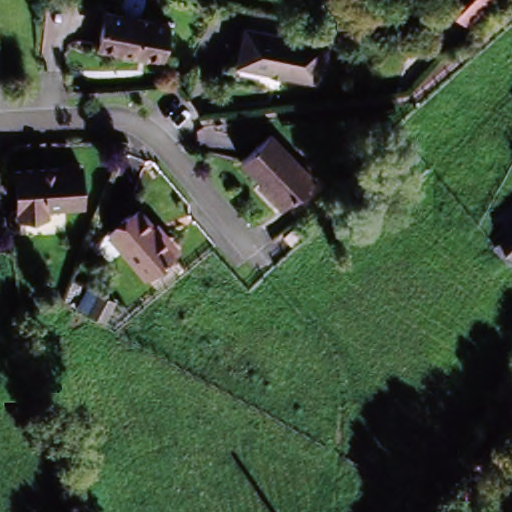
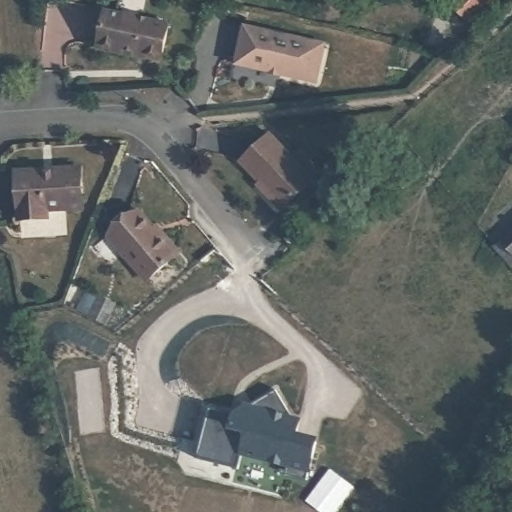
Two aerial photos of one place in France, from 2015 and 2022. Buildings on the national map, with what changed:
unchanged [(468,23),(449,3),(452,0),(491,0),(468,23)]
unchanged [(107,48),(93,45),(100,12),(166,26),(159,56),(125,55),(107,48)]
unchanged [(317,41),(314,54),(309,77),(231,59),(235,39),(239,24),(317,41)]
unchanged [(235,159),(265,135),(304,183),(273,207),(235,159)]
unchanged [(10,171),(75,165),(79,203),(15,210),(10,171)]
unchanged [(175,250),(144,276),(107,230),(139,204),(175,250)]
unchanged [(509,260),(490,241),(512,222),(512,257),(509,260)]
unchanged [(114,304),(102,322),(87,312),(100,292),(114,304)]
new [(234,411),(242,403),(252,405),(275,391),(290,416),(303,418),(299,433),(319,440),(310,473),(306,471),(305,479),(285,474),(287,465),(239,455),(237,466),(195,457),(208,409),(234,411)]

